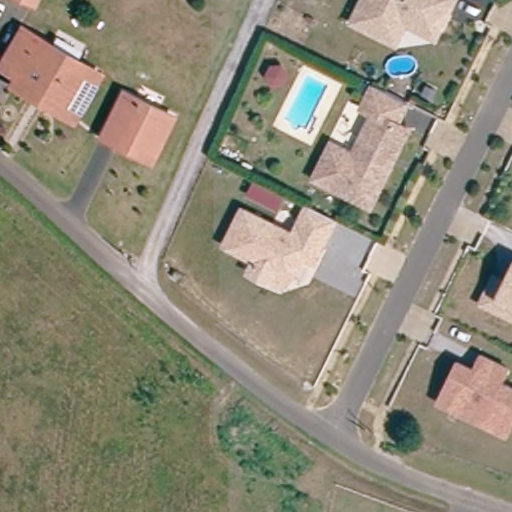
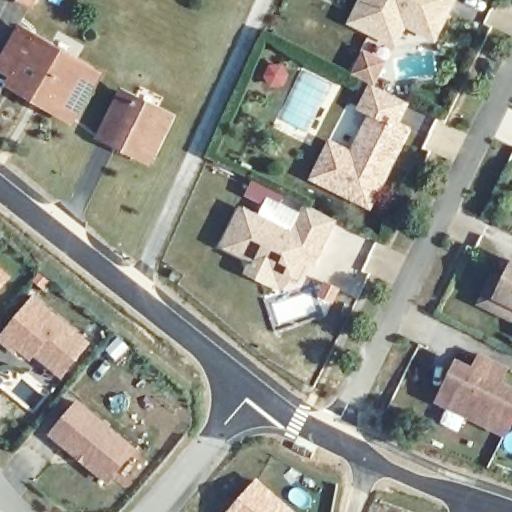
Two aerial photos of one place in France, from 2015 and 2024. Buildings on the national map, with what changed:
unchanged [(5,0),(33,0),(29,11),(5,0)]
unchanged [(349,20),(359,0),(452,0),(441,23),(434,37),(417,29),(404,23),(394,43),(386,38),(349,20)]
unchanged [(16,70),(0,61),(0,59),(19,26),(95,69),(86,85),(69,113),(11,79),(16,70)]
unchanged [(408,127),(370,204),(313,176),(330,141),(352,152),(371,111),(360,106),(371,83),(356,74),(367,52),(387,62),(376,84),(407,100),(397,121),(408,127)]
unchanged [(138,159),(101,141),(121,97),(171,119),(157,151),(151,164),(138,159)]
unchanged [(256,175),(283,189),(276,204),(249,190),(256,175)]
unchanged [(283,285),(250,269),(253,264),(256,257),(225,242),(243,205),(295,231),(309,203),(322,209),(338,217),(316,262),(312,259),(302,279),(283,285)]
new [(0,293),(0,266),(13,277),(0,293)]
unchanged [(486,295),(497,272),(508,277),(512,268),(512,308),(486,295)]
new [(87,344),(60,376),(39,359),(39,354),(35,351),(29,358),(16,347),(12,351),(0,340),(0,338),(33,299),(87,344)]
unchanged [(440,392),(455,362),(458,356),(474,364),(482,349),(508,363),(500,377),(512,383),(512,418),(507,429),(470,411),(439,395),(440,392)]
new [(49,436),(79,399),(139,449),(109,485),(49,436)]
new [(258,478),(297,512),(229,512),(258,478)]

